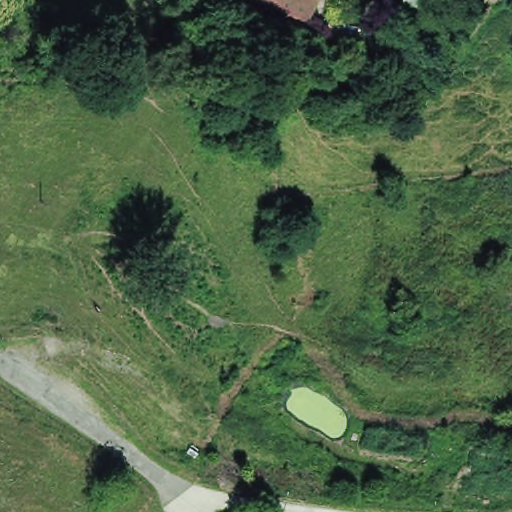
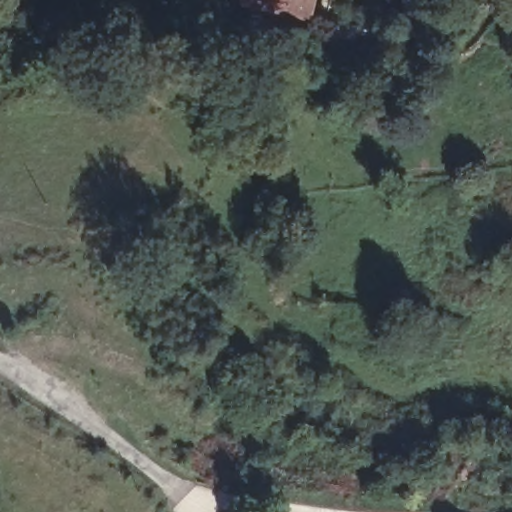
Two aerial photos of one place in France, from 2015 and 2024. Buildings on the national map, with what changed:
unchanged [(274,5),(253,0),(275,0),(274,5)]
unchanged [(310,13),(274,5),(275,0),(313,0),(310,13)]
unchanged [(273,14),(271,31),(249,29),(250,12),(273,14)]
unchanged [(305,58),(281,58),(281,30),(305,29),(305,58)]

